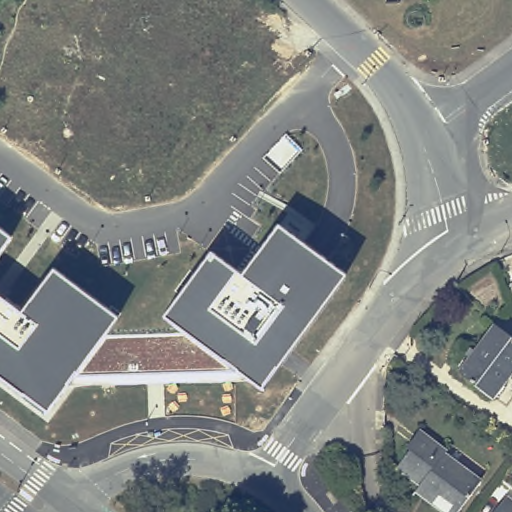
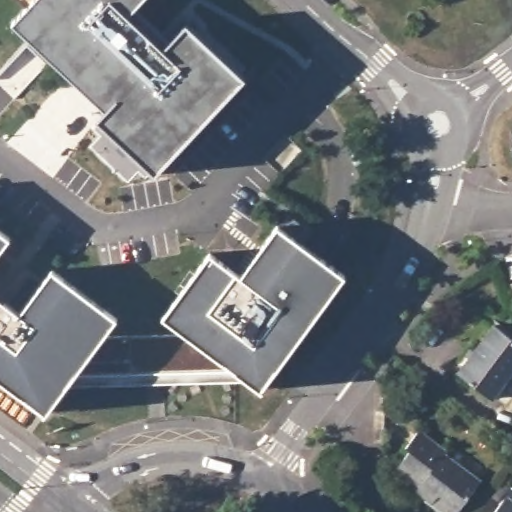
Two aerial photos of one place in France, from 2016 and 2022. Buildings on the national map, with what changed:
new [(140,0),(134,7),(169,40),(185,23),(245,78),(154,174),(94,119),(104,108),(12,22),(33,0),(140,0)]
unchanged [(261,389),(250,381),(183,331),(164,317),(210,253),(241,275),(277,226),(344,275),(261,389)]
unchanged [(9,238),(0,249),(0,231),(9,238)]
unchanged [(20,313),(52,269),(117,318),(104,335),(66,386),(46,413),(0,378),(0,297),(20,313)]
unchanged [(512,379),(496,405),(467,383),(459,377),(467,365),(476,351),(490,329),(512,344),(512,379)]
unchanged [(104,335),(183,331),(250,381),(66,386),(104,335)]
unchanged [(421,488),(399,471),(413,454),(410,451),(422,434),(450,456),(446,461),(482,489),(464,512),(436,512),(427,506),(417,496),(421,488)]
unchanged [(507,497),(512,499),(512,512),(496,512),(507,497)]

